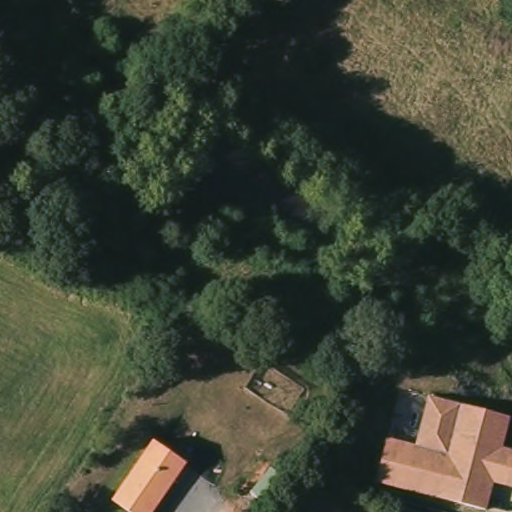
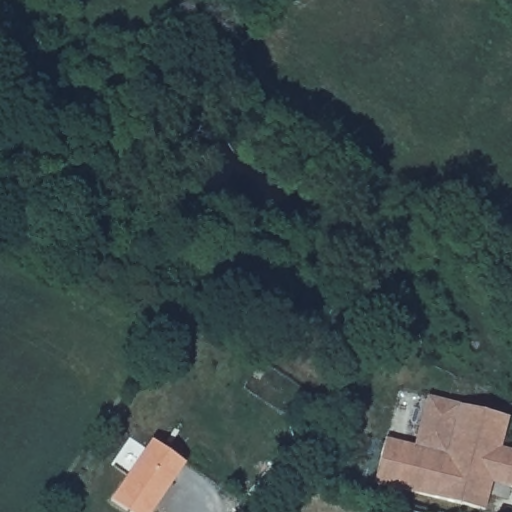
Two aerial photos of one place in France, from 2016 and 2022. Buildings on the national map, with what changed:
unchanged [(490,512),(381,483),(391,441),(420,448),(432,397),(436,398),(438,399),(472,407),(506,416),(512,418),(512,424),(506,447),(512,449),(512,485),(497,482),(490,512)]
unchanged [(114,498),(154,438),(187,461),(152,512),(134,512),(114,498)]

